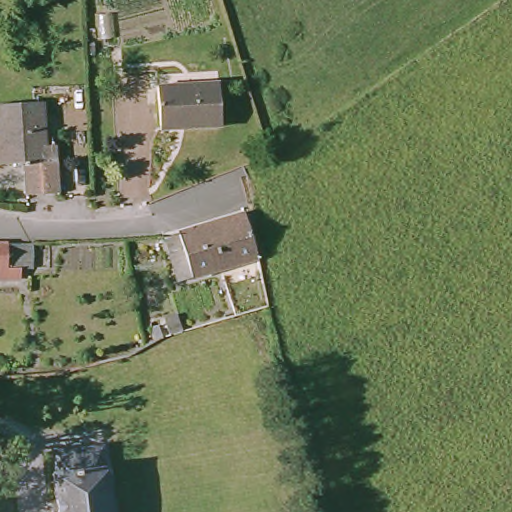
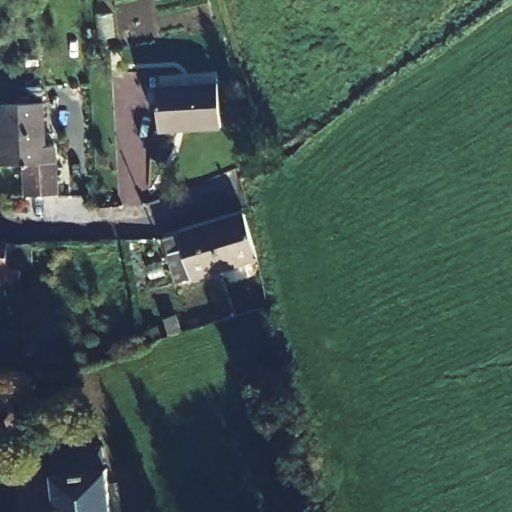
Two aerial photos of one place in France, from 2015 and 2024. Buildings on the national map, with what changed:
unchanged [(225,121),(160,126),(156,90),(222,85),(225,121)]
unchanged [(45,102),(44,147),(55,147),(55,190),(24,189),(24,160),(0,160),(0,102),(45,102)]
unchanged [(171,277),(161,231),(248,210),(259,256),(171,277)]
unchanged [(10,240),(12,273),(28,273),(29,280),(0,281),(0,240),(10,240)]
unchanged [(49,469),(55,468),(53,450),(101,445),(103,460),(110,460),(116,512),(55,512),(49,469)]

